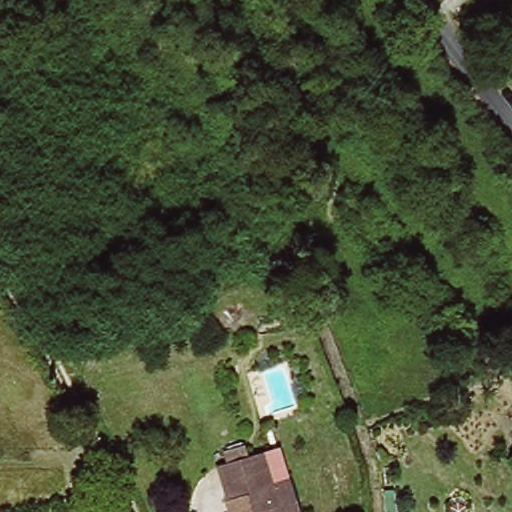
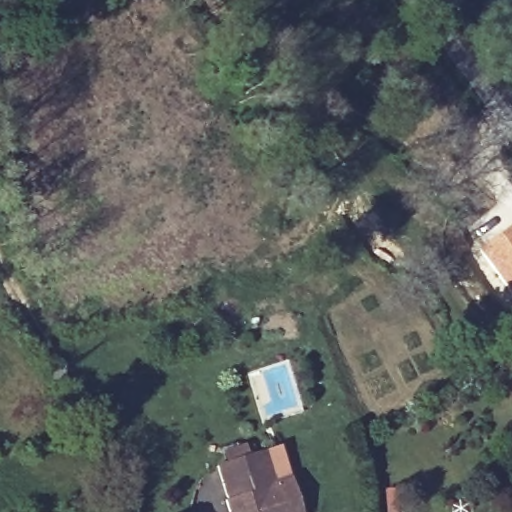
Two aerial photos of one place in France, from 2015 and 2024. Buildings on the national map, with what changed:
new [(512,223),(512,294),(477,249),(512,223)]
unchanged [(232,497),(220,462),(262,448),(273,486),(287,481),(297,512),(231,512),(227,500),(232,497)]

